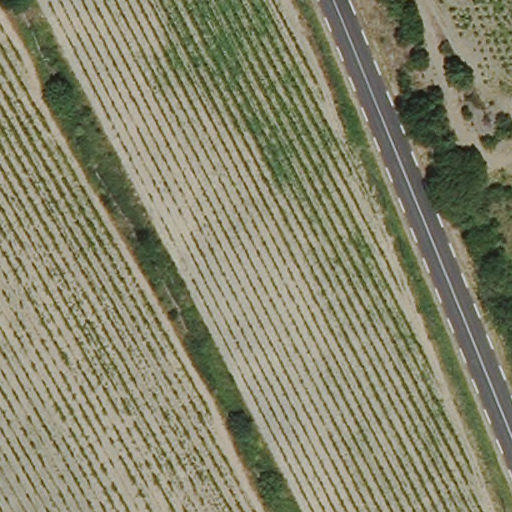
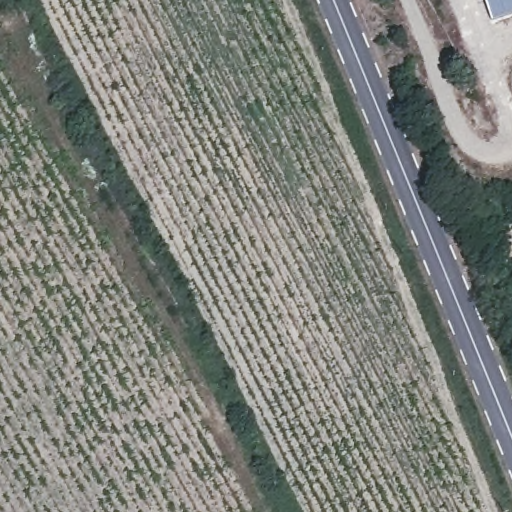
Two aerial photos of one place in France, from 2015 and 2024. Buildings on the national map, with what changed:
new [(512,14),(491,22),(484,0),(512,0),(512,14)]

